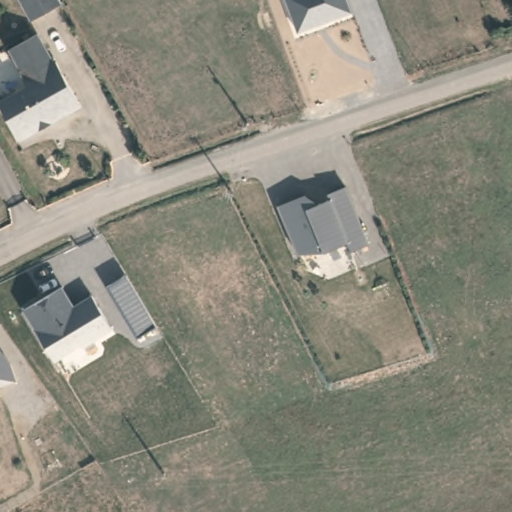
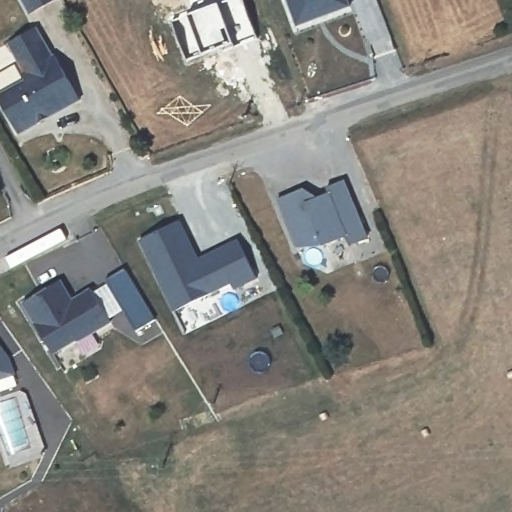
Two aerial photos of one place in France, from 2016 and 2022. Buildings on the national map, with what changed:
unchanged [(31,13),(24,0),(59,0),(31,13)]
unchanged [(288,0),(346,0),(350,9),(297,24),(288,0)]
unchanged [(0,89),(0,85),(28,73),(23,65),(26,64),(13,34),(40,20),(56,52),(59,49),(81,95),(18,126),(0,89)]
unchanged [(346,235),(321,245),(296,246),(278,198),(304,190),(318,197),(330,194),(328,186),(344,180),(367,237),(351,243),(346,235)]
new [(233,289),(230,284),(173,311),(138,239),(180,220),(199,257),(239,238),(258,277),(233,289)]
unchanged [(135,328),(109,281),(126,270),(155,318),(135,328)]
unchanged [(59,355),(23,303),(64,279),(74,296),(91,286),(112,321),(59,355)]
unchanged [(9,356),(16,373),(0,379),(0,345),(9,356)]

